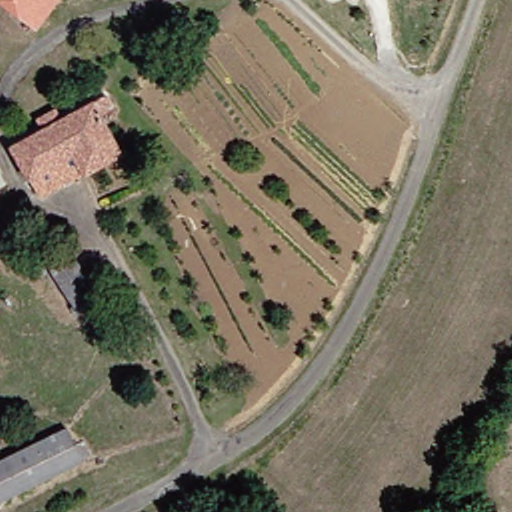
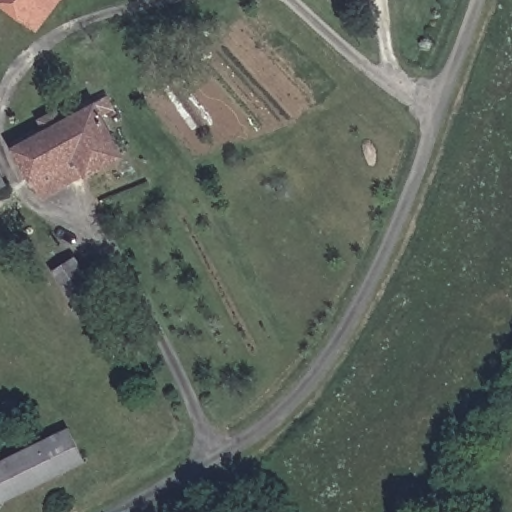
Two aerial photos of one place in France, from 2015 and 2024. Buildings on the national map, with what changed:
unchanged [(25,0),(74,0),(56,25),(25,0)]
unchanged [(88,159),(57,177),(61,185),(53,189),(30,146),(105,101),(118,92),(127,104),(111,112),(133,149),(97,172),(88,159)]
unchanged [(0,198),(0,142),(22,187),(0,198)]
unchanged [(111,295),(88,311),(59,267),(83,254),(111,295)]
unchanged [(93,453),(5,501),(0,491),(0,464),(75,425),(93,453)]

